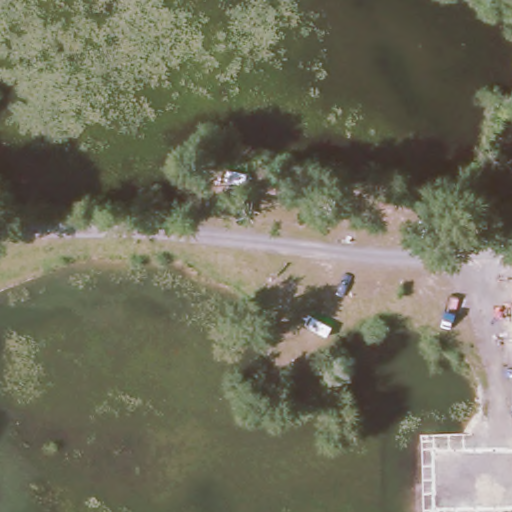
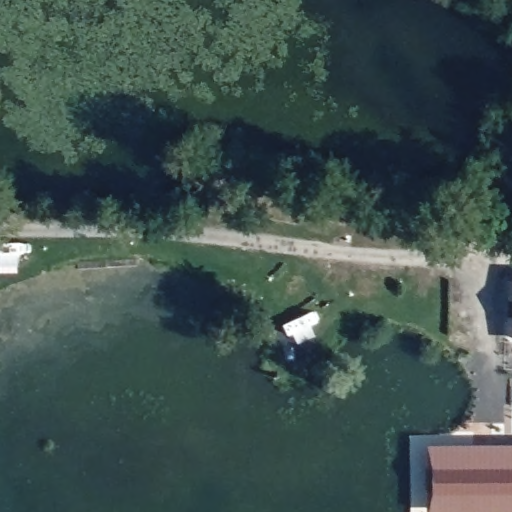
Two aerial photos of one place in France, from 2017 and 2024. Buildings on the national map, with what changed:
new [(512,434),(512,512),(422,512),(420,436),(463,436),(512,434)]

